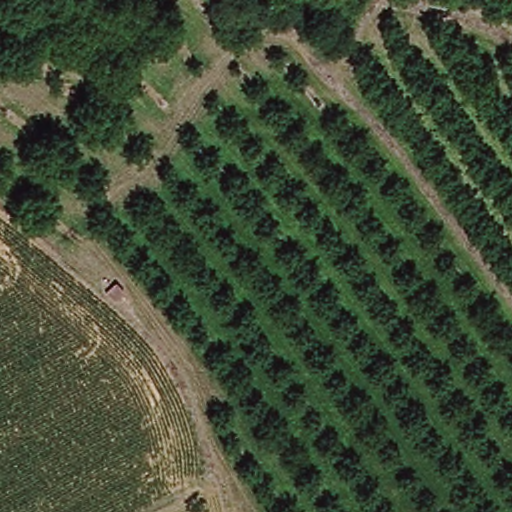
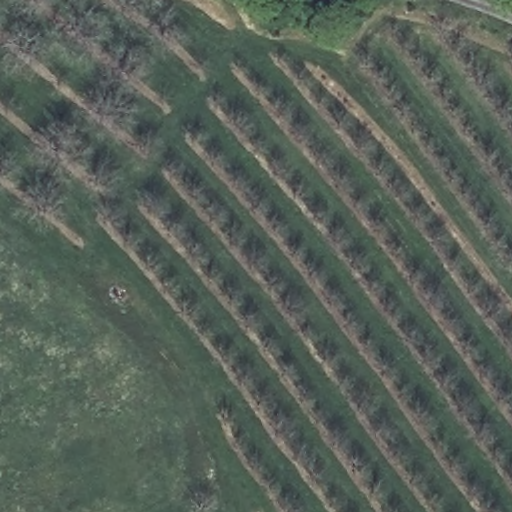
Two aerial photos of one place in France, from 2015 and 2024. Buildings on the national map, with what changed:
[]

